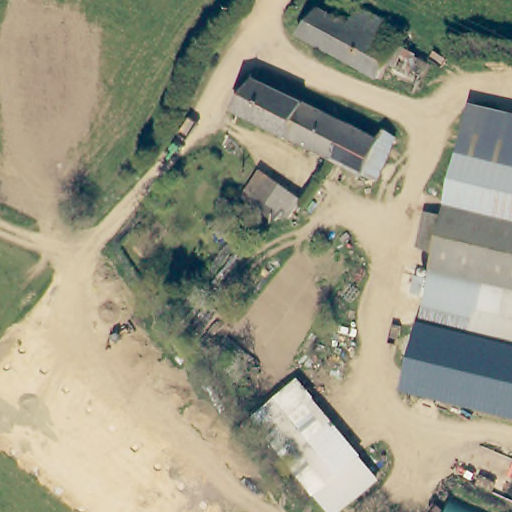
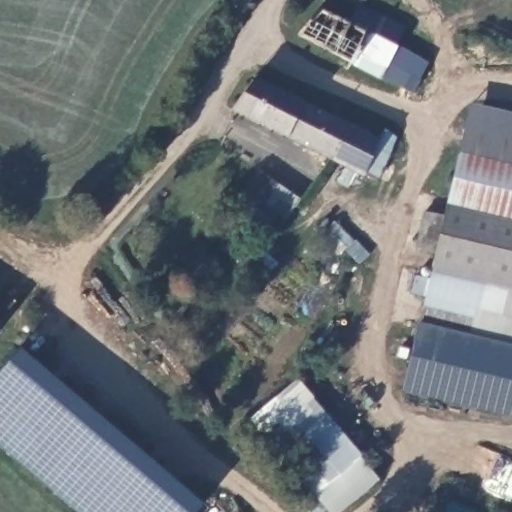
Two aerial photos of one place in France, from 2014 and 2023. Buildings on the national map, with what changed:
unchanged [(427,64),(408,97),(297,32),(328,0),(361,0),(359,2),(404,28),(395,45),(427,64)]
unchanged [(250,76),(375,136),(371,146),(385,153),(372,179),(227,109),(250,76)]
unchanged [(464,104),(512,115),(512,218),(441,201),(464,104)]
unchanged [(300,200),(288,218),(280,213),(274,221),(240,197),(259,171),(300,200)]
unchanged [(433,252),(410,247),(419,210),(438,214),(441,201),(512,218),(512,288),(429,268),(433,252)]
unchanged [(429,268),(512,288),(512,355),(414,332),(429,268)]
unchanged [(414,332),(512,355),(512,419),(403,394),(414,332)]
new [(196,512),(75,512),(0,449),(0,372),(19,349),(202,504),(196,512)]
unchanged [(376,478),(335,512),(329,512),(252,419),(296,382),(376,478)]
new [(451,502),(471,512),(446,512),(451,502)]

